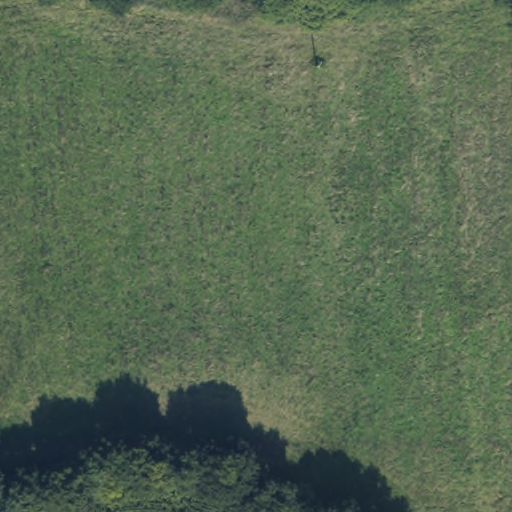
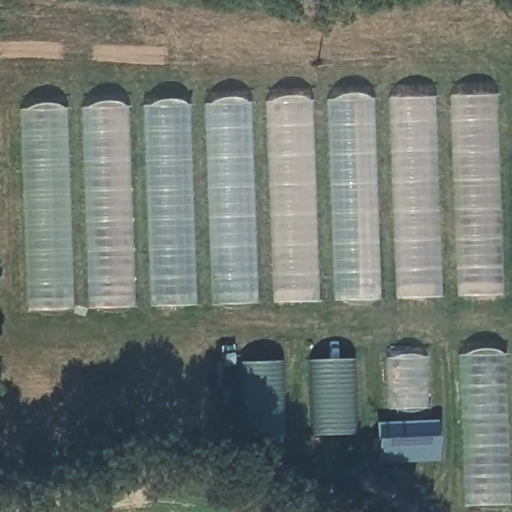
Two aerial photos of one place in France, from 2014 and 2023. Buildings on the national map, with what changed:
demolished [(397,19),(439,19),(437,83),(510,85),(503,285),(385,280),(397,19)]
new [(504,296),(28,313),(21,112),(497,97),(504,296)]
demolished [(512,332),(512,512),(391,512),(396,328),(512,332)]
new [(510,506),(465,507),(460,357),(507,356),(510,506)]
new [(358,436),(314,436),(313,361),(356,361),(358,436)]
new [(286,438),(243,440),(241,364),(284,363),(286,438)]
new [(439,462),(423,485),(372,453),(385,430),(439,462)]

